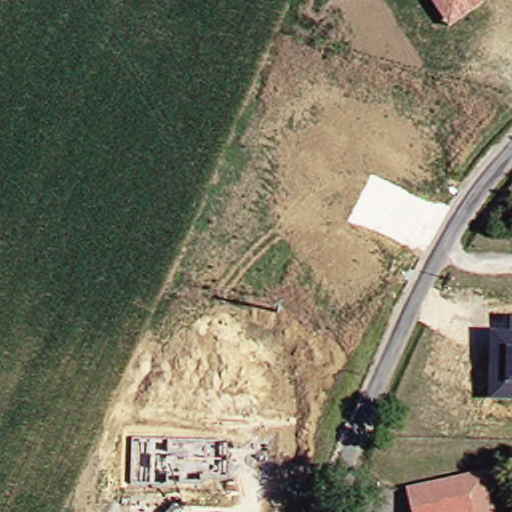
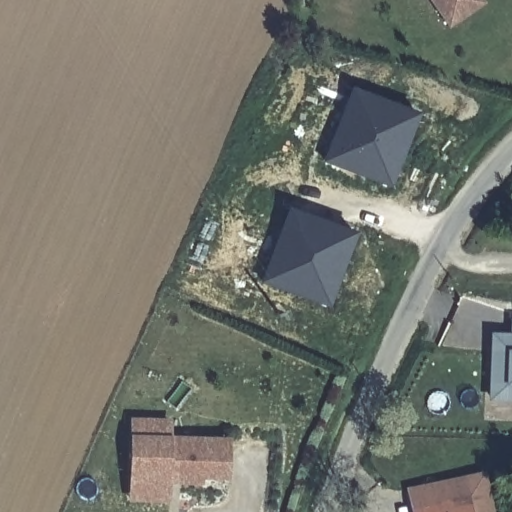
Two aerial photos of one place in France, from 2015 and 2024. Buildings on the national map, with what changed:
unchanged [(449,27),(430,0),(482,0),(483,2),(449,27)]
new [(390,188),(322,162),(351,87),(420,114),(390,188)]
new [(328,308),(260,282),(287,207),(356,232),(328,308)]
unchanged [(488,332),(508,333),(508,318),(512,318),(512,401),(487,400),(488,332)]
new [(229,481),(202,480),(202,486),(169,485),(168,503),(129,502),(132,417),(171,418),(171,434),(229,436),(229,481)]
unchanged [(409,490),(482,474),(491,512),(414,512),(409,490)]

